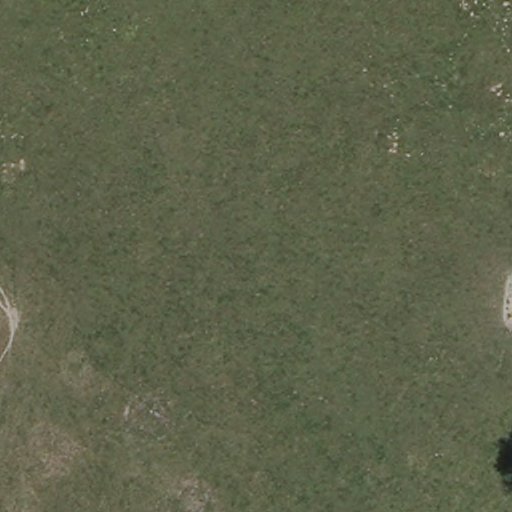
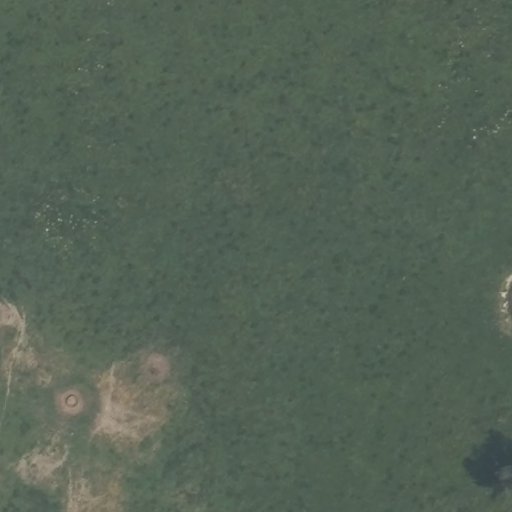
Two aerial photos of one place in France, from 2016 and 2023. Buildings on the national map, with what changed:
[]

